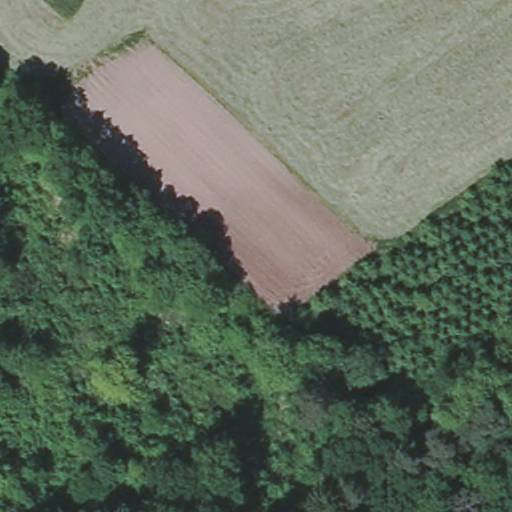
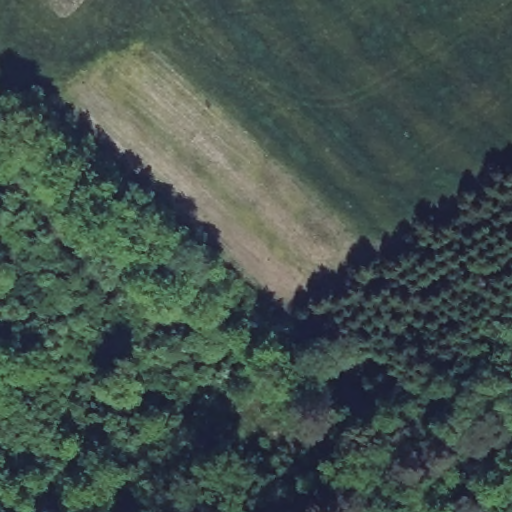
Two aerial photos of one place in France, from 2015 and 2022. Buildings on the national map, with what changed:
unchanged [(65,0),(73,0),(70,4),(65,0)]

